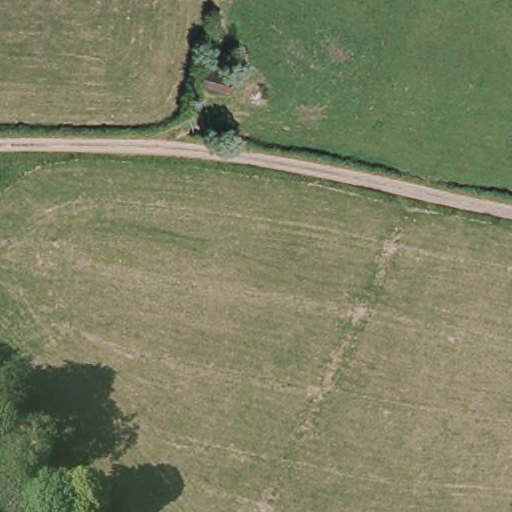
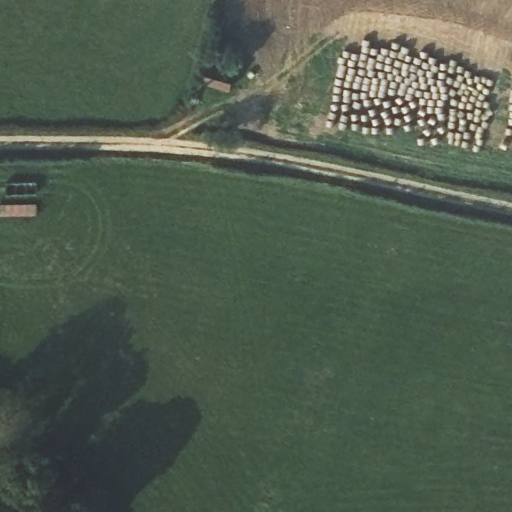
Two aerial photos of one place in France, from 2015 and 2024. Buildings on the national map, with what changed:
unchanged [(231,67),(227,89),(202,81),(208,60),(231,67)]

